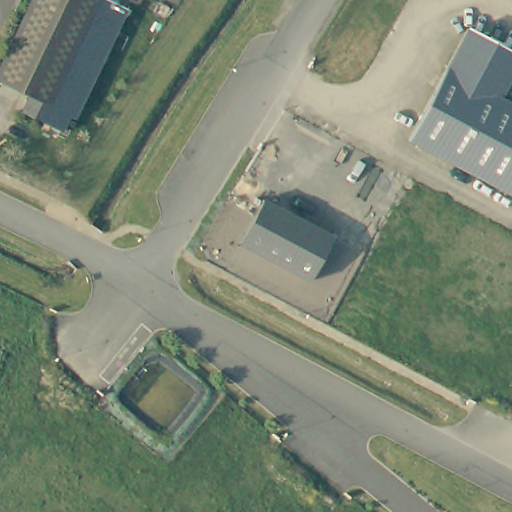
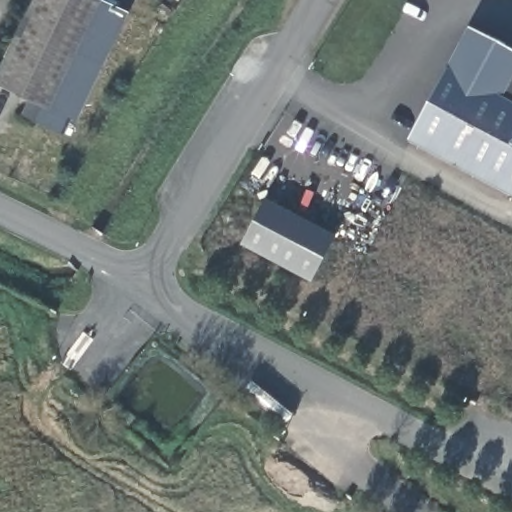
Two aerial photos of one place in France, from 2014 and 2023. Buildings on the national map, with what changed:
unchanged [(61,118),(57,115),(48,131),(9,108),(17,94),(0,84),(0,43),(24,0),(95,0),(119,13),(61,118)]
unchanged [(512,195),(409,141),(467,27),(512,52),(512,195)]
unchanged [(335,235),(311,283),(240,245),(265,199),(335,235)]

